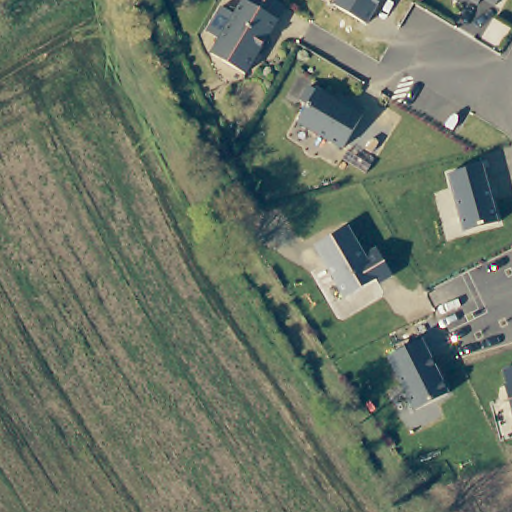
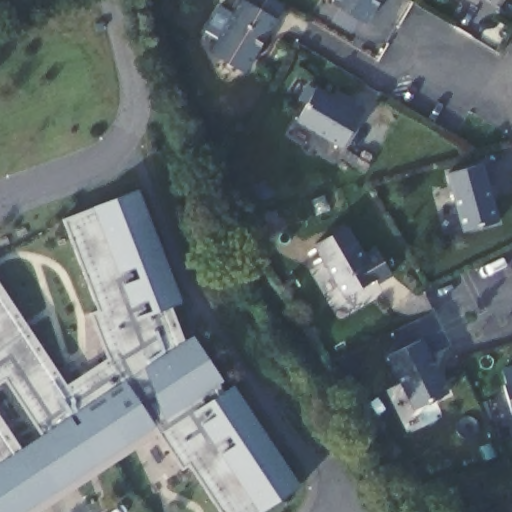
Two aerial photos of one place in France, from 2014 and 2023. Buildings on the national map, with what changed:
unchanged [(215,51),(245,0),(283,0),(285,1),(277,15),(280,17),(248,71),(215,51)]
unchanged [(383,0),(371,21),(337,1),(338,0),(383,0)]
unchanged [(476,0),(480,0),(479,2),(476,0)]
unchanged [(491,0),(499,0),(497,3),(491,0)]
unchanged [(344,104),(347,98),(369,112),(347,148),(303,120),(313,104),(306,100),(315,85),(344,104)]
unchanged [(497,221),(462,230),(448,174),(482,165),(497,221)]
new [(67,384),(109,358),(92,314),(100,311),(64,219),(92,207),(139,189),(181,304),(172,307),(184,340),(193,334),(223,381),(219,384),(224,392),(234,386),(300,486),(260,512),(220,512),(190,465),(184,469),(159,433),(41,512),(0,512),(0,416),(21,448),(42,435),(6,380),(0,384),(0,284),(67,384)]
unchanged [(363,254),(376,248),(392,276),(379,284),(375,279),(343,296),(312,246),(348,225),(363,254)]
unchanged [(412,411),(386,357),(422,340),(448,392),(412,411)]
unchanged [(512,365),(512,411),(502,367),(512,365)]

